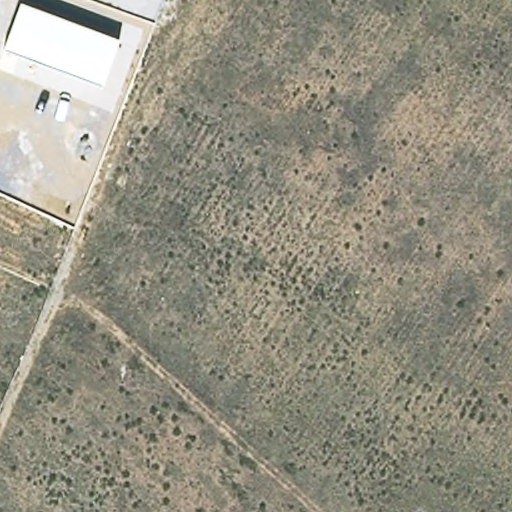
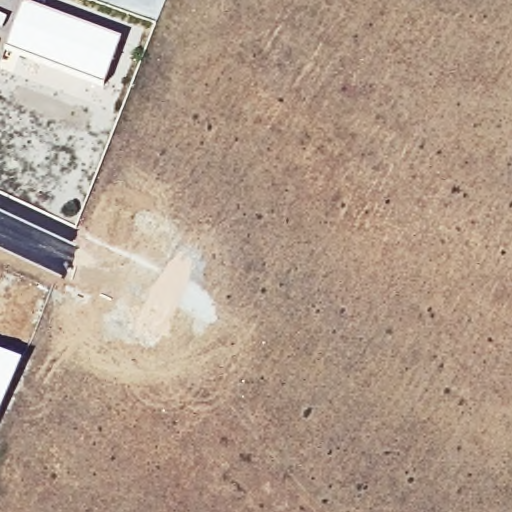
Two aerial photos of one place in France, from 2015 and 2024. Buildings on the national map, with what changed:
unchanged [(118,41),(102,87),(2,51),(19,4),(118,41)]
new [(0,410),(0,352),(22,361),(0,410)]

